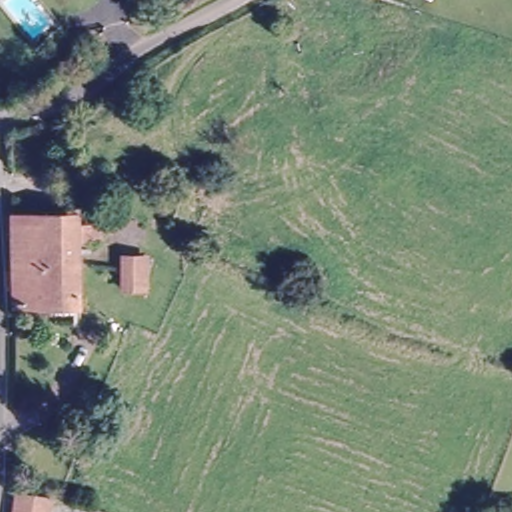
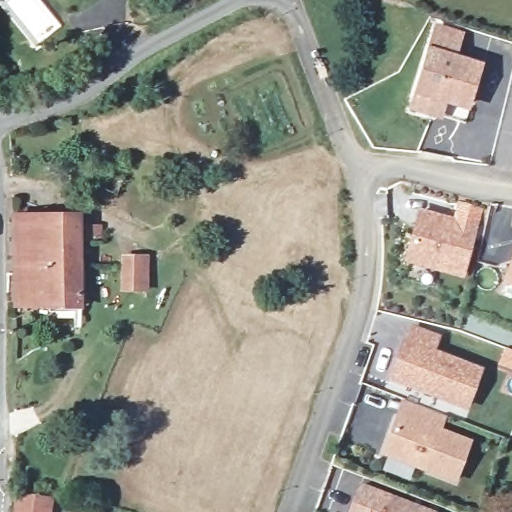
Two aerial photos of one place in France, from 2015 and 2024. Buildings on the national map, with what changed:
new [(425,60),(473,72),(460,128),(411,116),(425,60)]
new [(461,280),(402,262),(419,209),(477,227),(461,280)]
unchanged [(11,236),(11,228),(43,228),(43,224),(47,225),(47,227),(79,227),(79,236),(100,236),(100,252),(79,251),(79,273),(79,314),(12,316),(11,303),(8,303),(7,283),(12,283),(11,236)]
unchanged [(151,296),(119,297),(118,258),(151,257),(151,296)]
new [(512,286),(505,283),(512,266),(512,286)]
new [(403,343),(407,333),(409,329),(435,339),(433,342),(429,353),(475,371),(461,407),(387,378),(401,342),(403,343)]
new [(400,400),(410,404),(440,416),(435,431),(465,442),(450,480),(380,453),(395,415),(400,400)]
new [(434,512),(348,512),(359,482),(434,512)]
unchanged [(14,494),(43,500),(41,512),(10,512),(14,494)]

